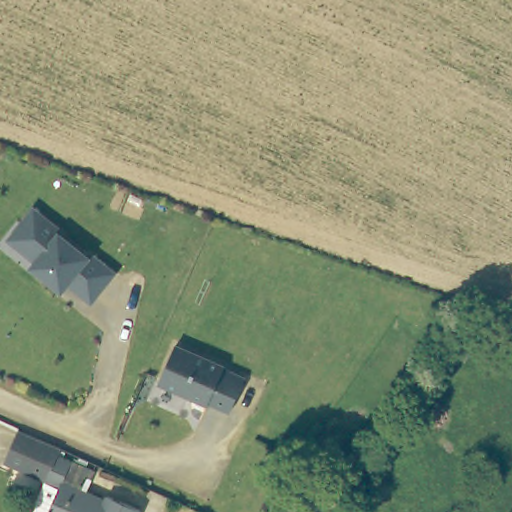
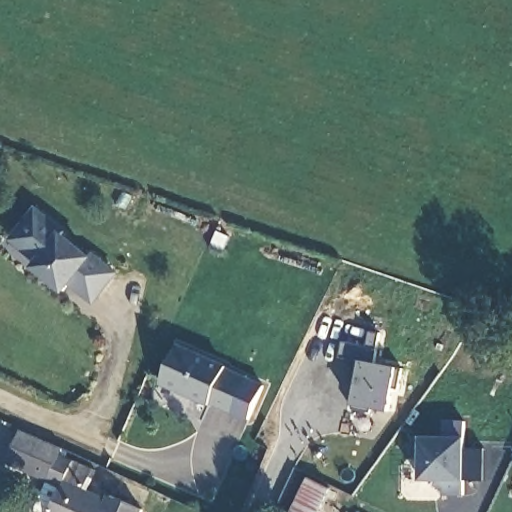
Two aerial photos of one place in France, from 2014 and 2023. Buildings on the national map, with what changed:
unchanged [(61,233),(59,237),(86,259),(89,255),(114,275),(91,304),(66,285),(61,292),(32,269),(37,263),(10,241),(23,224),(34,211),(61,233)]
new [(343,343),(368,347),(371,332),(380,334),(375,363),(397,367),(404,368),(400,391),(393,390),(390,412),(353,405),(361,361),(341,357),(343,343)]
unchanged [(204,404),(203,406),(154,384),(171,346),(220,368),(220,370),(241,380),(225,413),(204,404)]
new [(443,496),(443,488),(437,488),(438,482),(420,481),(420,457),(410,458),(411,436),(420,437),(443,437),(443,421),(465,421),(465,438),(464,483),(463,497),(443,496)]
unchanged [(2,466),(16,433),(61,454),(57,463),(90,477),(85,497),(106,506),(108,502),(131,512),(36,512),(47,485),(2,466)]
unchanged [(316,512),(289,512),(306,481),(327,492),(316,512)]

